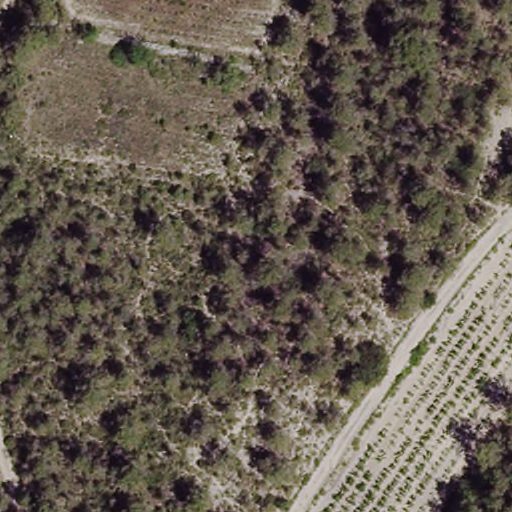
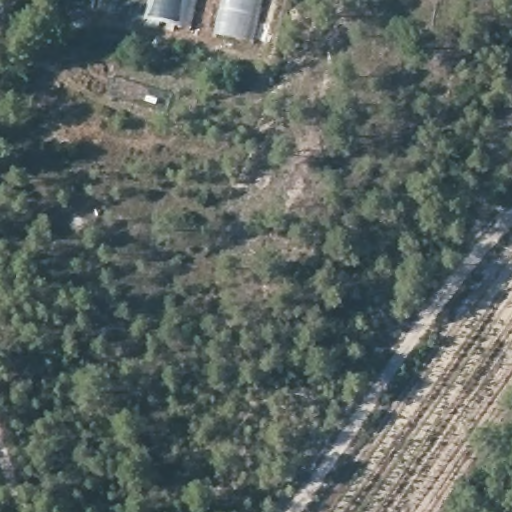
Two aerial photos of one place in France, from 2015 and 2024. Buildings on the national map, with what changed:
new [(189,30),(149,20),(153,0),(196,0),(189,30)]
new [(253,44),(215,35),(223,0),(263,0),(253,44)]

